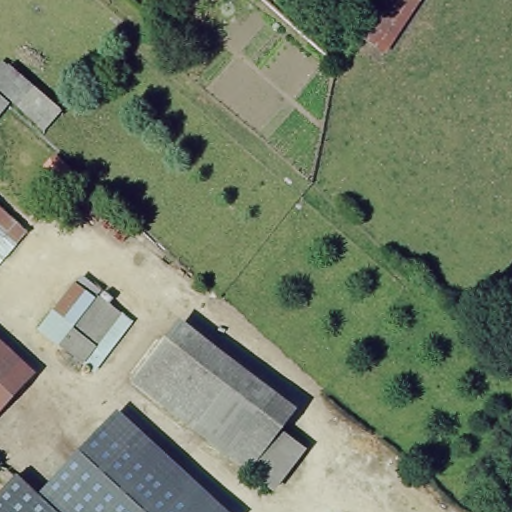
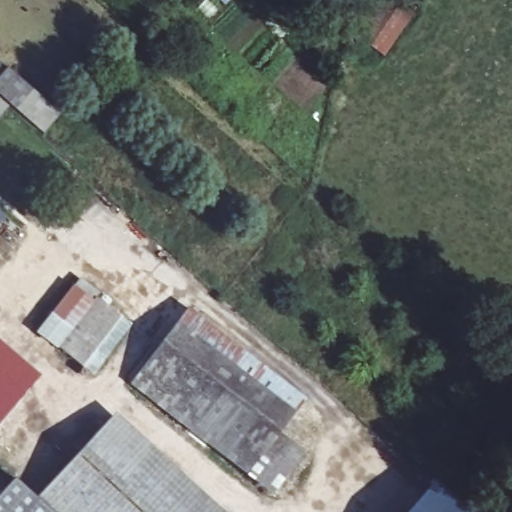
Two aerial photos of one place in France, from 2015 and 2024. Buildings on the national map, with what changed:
unchanged [(383,52),(352,27),(373,0),(418,0),(383,52)]
unchanged [(22,125),(0,105),(0,76),(36,108),(22,125)]
unchanged [(0,248),(0,204),(21,224),(0,248)]
unchanged [(54,341),(63,327),(42,312),(69,277),(119,310),(83,362),(54,341)]
unchanged [(174,318),(291,412),(275,432),(159,336),(174,318)]
unchanged [(275,432),(297,451),(265,490),(126,376),(159,336),(275,432)]
unchanged [(23,382),(0,361),(0,340),(33,370),(23,382)]
unchanged [(0,407),(0,361),(23,382),(0,407)]
unchanged [(186,512),(105,436),(115,425),(209,512),(186,512)]
unchanged [(50,512),(41,503),(105,436),(186,512),(50,512)]
new [(467,512),(405,512),(432,481),(467,512)]
unchanged [(41,503),(50,512),(0,512),(0,505),(20,484),(41,503)]

